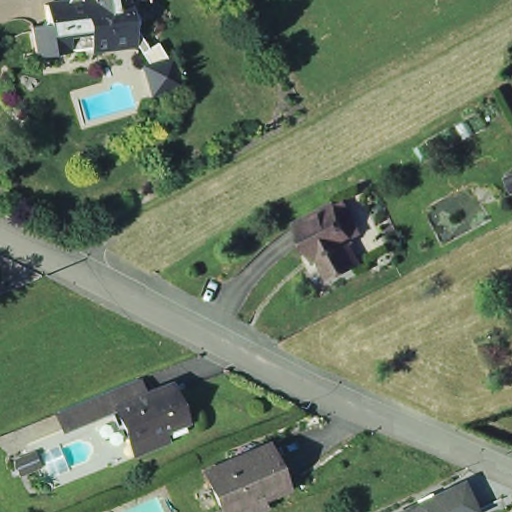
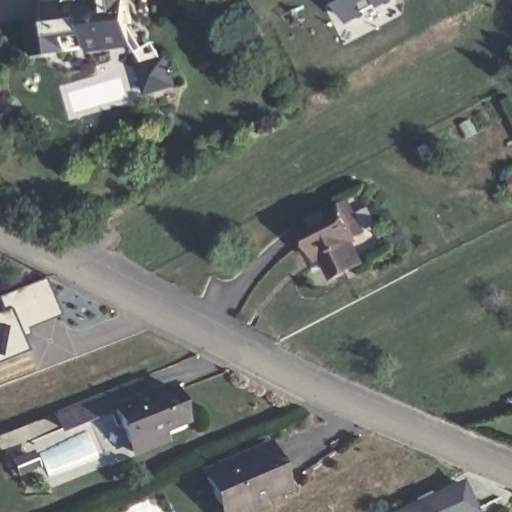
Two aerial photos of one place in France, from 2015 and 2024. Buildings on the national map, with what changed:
unchanged [(94,53),(80,50),(71,55),(41,59),(35,30),(52,28),(50,9),(71,5),(78,12),(89,3),(98,4),(97,0),(139,0),(132,1),(135,30),(137,46),(115,49),(94,53)]
new [(369,10),(370,13),(350,24),(338,0),(397,0),(383,7),(380,4),(369,10)]
unchanged [(167,57),(169,56),(177,84),(149,92),(142,64),(153,60),(150,57),(160,49),(167,57)]
unchanged [(310,239),(304,226),(341,206),(352,201),(359,214),(372,237),(361,243),(357,245),(365,260),(335,276),(326,257),(321,260),(317,254),(310,239)]
new [(28,327),(25,327),(28,333),(21,337),(27,350),(0,360),(0,312),(2,311),(0,304),(0,295),(45,277),(60,314),(28,327)]
unchanged [(129,447),(117,414),(110,417),(102,397),(137,384),(142,400),(167,390),(182,427),(157,436),(160,446),(132,457),(129,447)]
unchanged [(110,417),(64,433),(57,414),(102,397),(110,417)]
unchanged [(204,478),(201,471),(228,459),(262,445),(280,487),(256,498),(260,506),(246,512),(218,512),(204,478)]
unchanged [(461,479),(477,512),(396,512),(461,479)]

